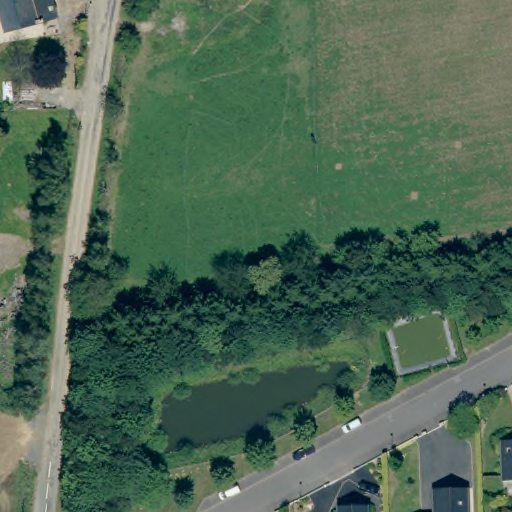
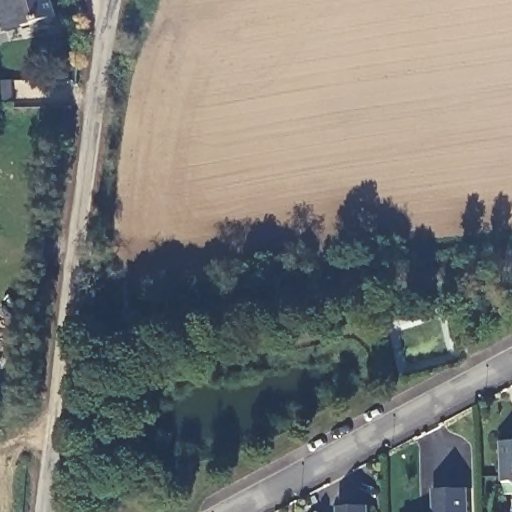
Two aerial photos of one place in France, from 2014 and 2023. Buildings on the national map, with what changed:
unchanged [(57,13),(9,28),(1,0),(54,0),(57,13)]
unchanged [(502,483),(500,445),(512,444),(512,482),(502,483)]
unchanged [(432,512),(433,493),(466,491),(467,512),(432,512)]
unchanged [(368,507),(369,512),(339,512),(339,509),(368,507)]

